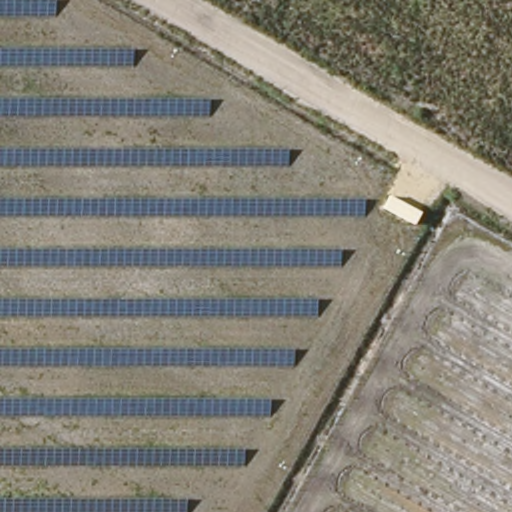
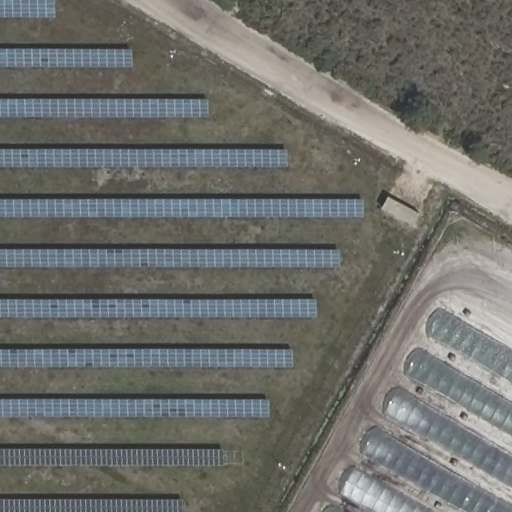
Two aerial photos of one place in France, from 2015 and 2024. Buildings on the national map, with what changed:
demolished [(470,272),(512,296),(512,512),(335,512),(470,272)]

